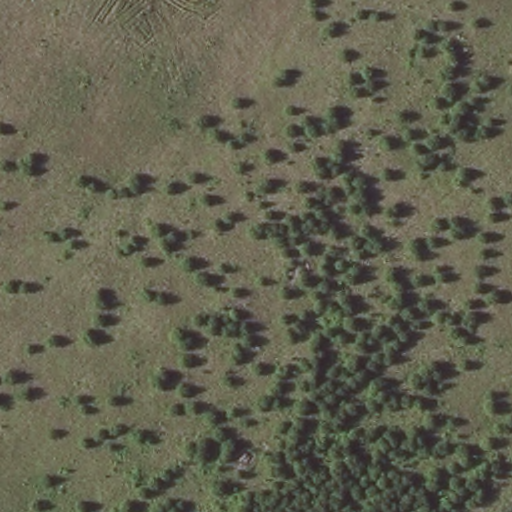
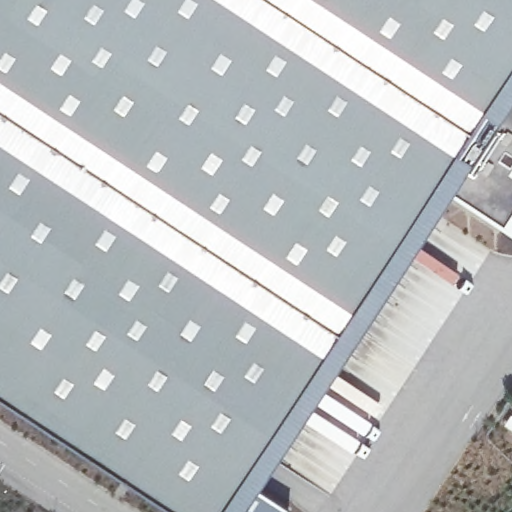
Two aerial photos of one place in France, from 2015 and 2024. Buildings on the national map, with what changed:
new [(509,83),(512,85),(512,217),(504,229),(440,188),(246,483),(286,510),(285,512),(173,512),(0,398),(0,0),(512,0),(512,78),(509,83)]

